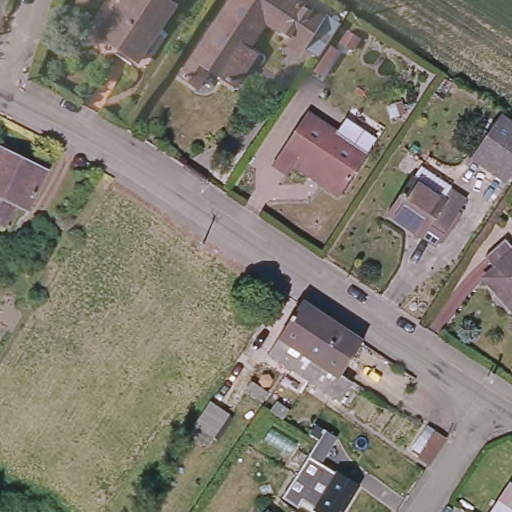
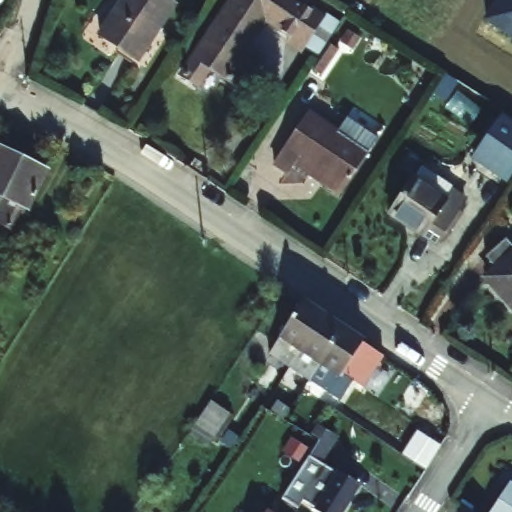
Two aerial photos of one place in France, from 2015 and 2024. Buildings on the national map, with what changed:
unchanged [(125,0),(179,0),(141,55),(104,30),(125,0)]
unchanged [(240,0),(266,0),(279,9),(285,0),(293,0),(328,23),(309,50),(271,24),(243,65),(252,70),(238,90),(213,73),(202,91),(186,80),(240,0)]
new [(497,0),(512,0),(512,40),(484,20),(497,0)]
unchanged [(342,42),(349,32),(359,38),(352,49),(342,42)]
unchanged [(323,74),(314,69),(331,45),(339,50),(323,74)]
unchanged [(388,105),(402,100),(407,113),(392,118),(388,105)]
unchanged [(349,183),(304,153),(294,167),(279,157),(313,108),(341,127),(352,112),(383,133),(349,183)]
unchanged [(512,115),(512,175),(511,176),(478,153),(507,112),(512,115)]
unchanged [(30,202),(26,208),(23,207),(15,223),(0,216),(0,140),(52,165),(33,204),(30,202)]
unchanged [(436,244),(389,213),(421,166),(452,186),(449,189),(465,200),(457,212),(462,215),(444,242),(439,239),(436,244)]
unchanged [(486,282),(496,273),(486,261),(506,243),(512,250),(512,312),(486,282)]
unchanged [(299,352),(279,338),(313,285),(333,299),(299,352)]
unchanged [(319,365),(299,352),(333,299),(353,312),(319,365)]
unchanged [(353,359),(363,365),(351,386),(319,365),(353,312),(373,326),(353,359)]
unchanged [(263,399),(246,389),(251,380),(269,392),(263,399)]
unchanged [(284,419),(271,411),(278,400),(290,409),(284,419)]
unchanged [(214,437),(194,423),(210,401),(230,414),(214,437)]
unchanged [(418,457),(421,452),(413,447),(422,433),(429,438),(434,430),(446,437),(429,463),(418,457)]
unchanged [(329,461),(369,486),(352,512),(331,512),(313,500),(309,507),(294,497),(325,447),(331,437),(341,443),(329,461)]
unchanged [(512,488),(512,512),(484,512),(503,482),(512,488)]
unchanged [(278,512),(267,512),(271,506),(278,512)]

